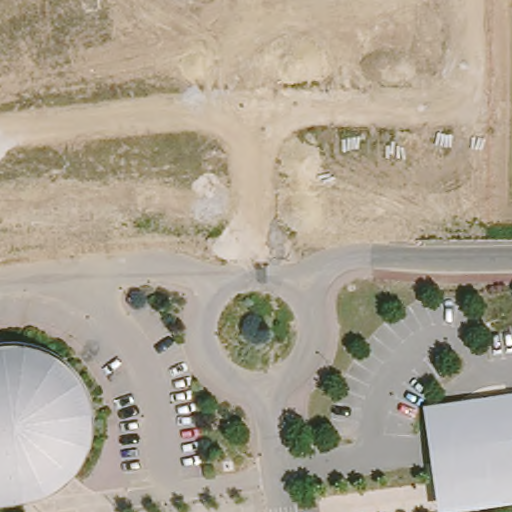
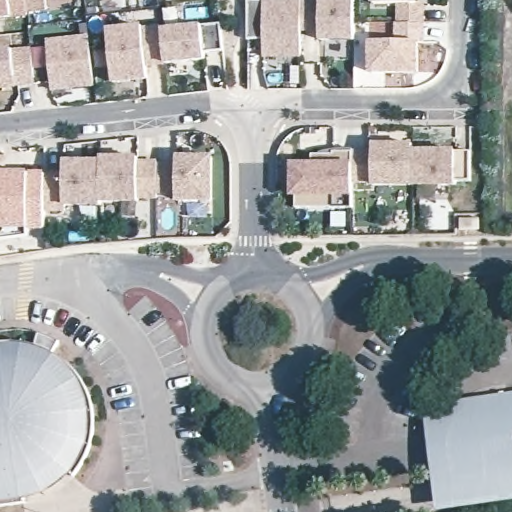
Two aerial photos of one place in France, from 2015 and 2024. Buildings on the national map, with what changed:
new [(25,12),(28,12),(28,17),(11,18),(0,19),(0,0),(24,0),(25,12)]
new [(42,12),(25,12),(24,0),(42,0),(42,12)]
new [(101,3),(100,0),(134,0),(101,3)]
new [(355,40),(320,41),(320,30),(301,30),(302,57),(264,58),(264,39),(249,40),(248,0),(354,0),(355,40)]
new [(423,24),(397,24),(395,2),(370,2),(369,0),(420,0),(423,24)]
new [(199,24),(219,23),(223,49),(204,50),(206,60),(166,65),(161,28),(199,24)]
new [(419,74),(368,74),(368,41),(395,41),(397,24),(423,24),(425,24),(425,42),(420,43),(419,74)]
new [(166,65),(146,68),(147,82),(109,86),(103,33),(161,28),(166,65)]
new [(89,39),(94,86),(52,90),(47,43),(89,39)]
new [(31,88),(6,91),(0,92),(0,49),(5,48),(29,48),(31,88)]
new [(372,153),(372,146),(413,146),(413,150),(412,186),(372,186),(372,183),(352,183),(352,153),(372,153)]
new [(472,188),(445,188),(412,186),(413,150),(451,151),(470,153),(472,188)]
new [(352,153),(352,183),(352,208),(334,207),(335,196),(291,198),(290,162),(312,162),(311,154),(333,154),(333,151),(352,151),(352,153)]
new [(64,172),(64,161),(101,161),(102,158),(113,158),(114,162),(157,162),(158,165),(158,193),(158,199),(139,198),(139,202),(102,202),(102,206),(61,206),(61,211),(46,211),(45,172),(64,172)]
new [(176,166),(176,158),(212,158),(212,201),(177,201),(177,193),(158,193),(158,165),(176,166)]
new [(46,211),(46,231),(30,232),(31,238),(2,243),(1,237),(0,237),(0,172),(31,173),(45,172),(46,211)]
unchanged [(7,344),(17,344),(34,347),(47,352),(62,358),(76,373),(83,385),(91,404),(93,418),(90,438),(85,453),(79,465),(71,474),(61,484),(52,490),(36,498),(9,505),(0,506),(0,345),(7,344)]
unchanged [(443,512),(438,512),(421,406),(512,394),(512,506),(443,512)]

